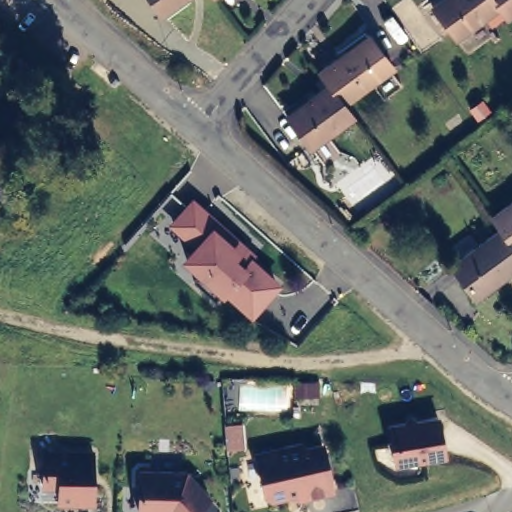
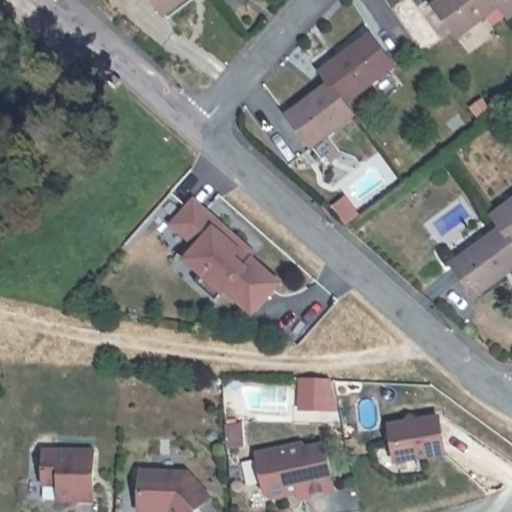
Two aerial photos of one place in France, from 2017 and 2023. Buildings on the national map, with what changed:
unchanged [(155,0),(185,0),(165,14),(155,0)]
unchanged [(455,40),(430,6),(439,0),(494,0),(500,7),(455,40)]
unchanged [(494,0),(512,0),(512,16),(507,19),(500,7),(494,0)]
unchanged [(367,30),(392,65),(344,99),(327,79),(317,66),(367,30)]
unchanged [(306,142),(284,109),(327,79),(344,99),(352,110),(306,142)]
unchanged [(251,317),(222,295),(215,302),(195,285),(199,277),(179,260),(192,245),(167,225),(192,196),(255,252),(252,256),(284,283),(251,317)]
unchanged [(512,240),(502,229),(494,217),(512,203),(512,240)]
unchanged [(452,263),(502,229),(512,240),(512,273),(476,297),(452,263)]
unchanged [(389,425),(405,422),(409,417),(415,421),(438,417),(444,453),(395,461),(389,425)]
unchanged [(300,497),(298,492),(272,497),(265,493),(257,454),(301,445),(302,450),(322,445),(332,489),(300,497)]
unchanged [(98,452),(97,500),(63,500),(63,485),(47,484),(48,451),(98,452)]
unchanged [(186,473),(209,497),(193,512),(159,512),(139,511),(140,471),(186,473)]

